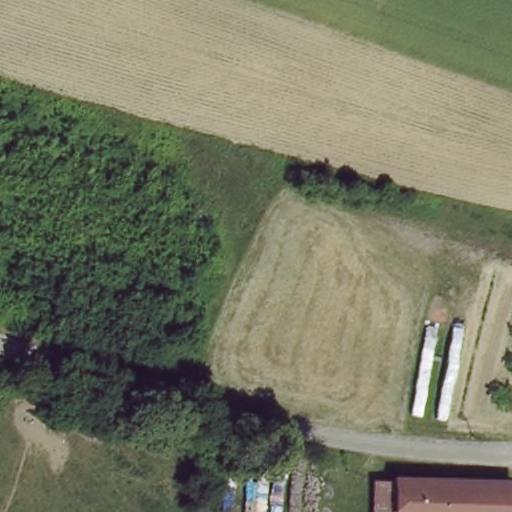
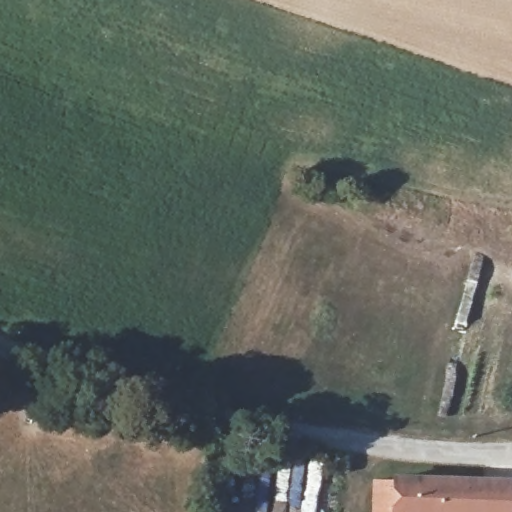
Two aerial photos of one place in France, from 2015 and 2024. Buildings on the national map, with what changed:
unchanged [(398,484),(396,512),(373,512),(375,483),(398,484)]
unchanged [(512,488),(512,512),(396,512),(398,484),(512,488)]

